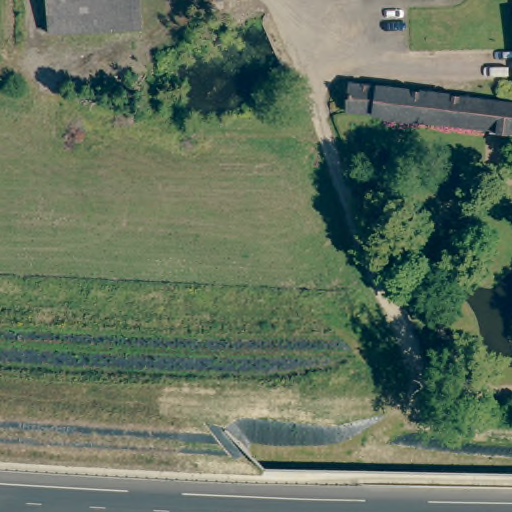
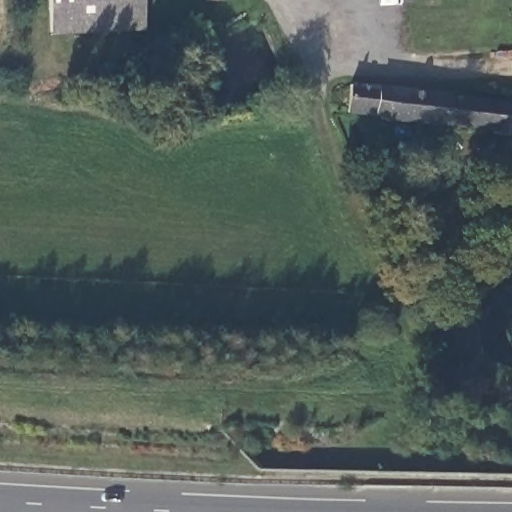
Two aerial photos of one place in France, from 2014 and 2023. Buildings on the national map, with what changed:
unchanged [(47,0),(136,0),(138,33),(49,37),(47,0)]
unchanged [(442,126),(439,126),(385,121),(376,117),(346,114),(349,85),(485,102),(482,130),(442,126)]
unchanged [(488,129),(482,130),(485,102),(512,106),(512,136),(489,132),(488,129)]

